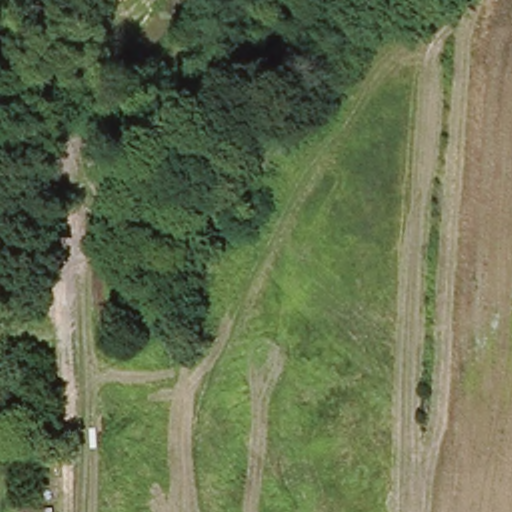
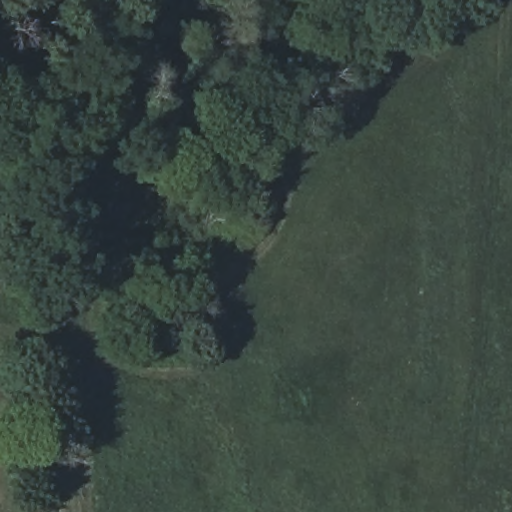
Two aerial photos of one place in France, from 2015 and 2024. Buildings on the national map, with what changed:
[]

